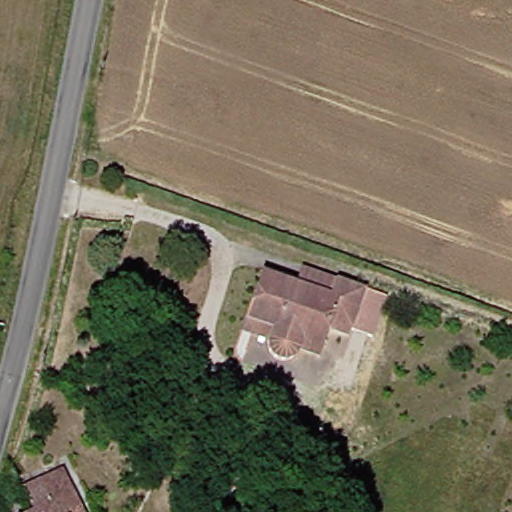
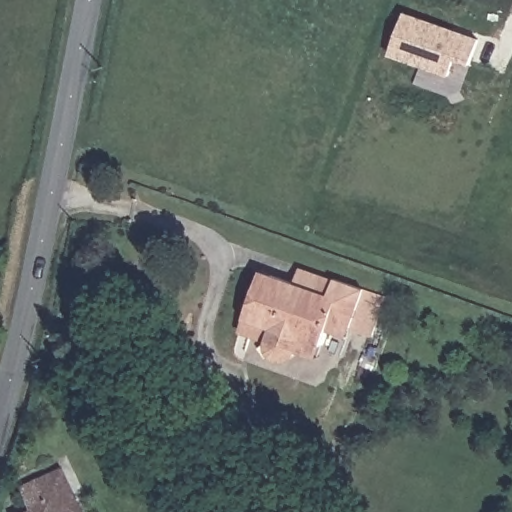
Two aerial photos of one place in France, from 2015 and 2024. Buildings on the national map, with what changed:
new [(472,65),(456,59),(451,75),(391,53),(406,11),(481,37),(472,65)]
unchanged [(290,346),(276,358),(262,356),(257,337),(245,335),(247,325),(236,322),(250,273),(262,277),(321,296),(327,279),(376,294),(362,334),(342,328),(339,335),(320,330),(312,343),(310,353),(290,346)]
unchanged [(14,491),(56,473),(76,512),(22,512),(14,491)]

